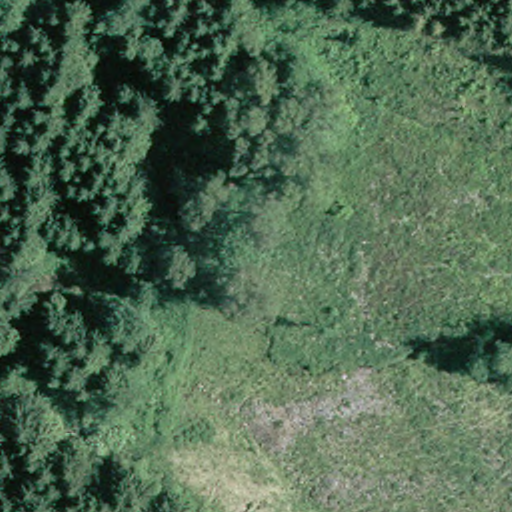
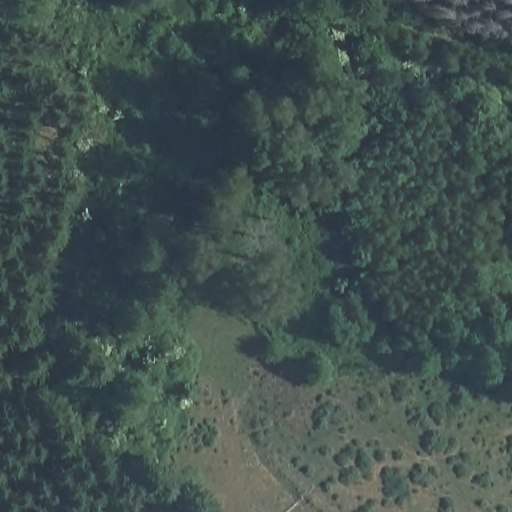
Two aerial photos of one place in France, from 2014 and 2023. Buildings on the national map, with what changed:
[]

